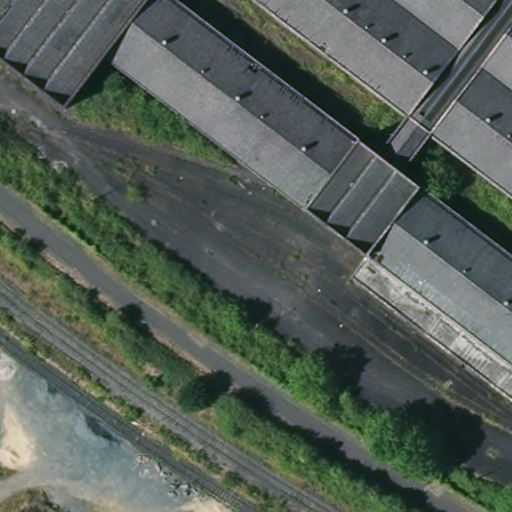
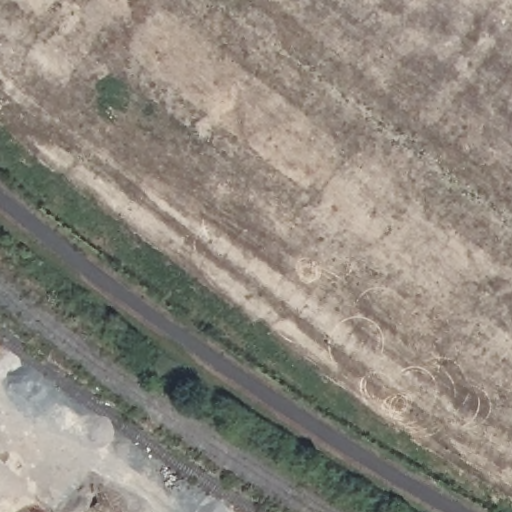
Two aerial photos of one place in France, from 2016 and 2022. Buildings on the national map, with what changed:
demolished [(364,252),(261,174),(104,51),(63,105),(0,56),(0,0),(181,0),(379,152),(408,115),(296,30),(258,0),(512,0),(512,195),(445,144),(417,180),(512,254),(512,401),(347,274),(364,252)]

